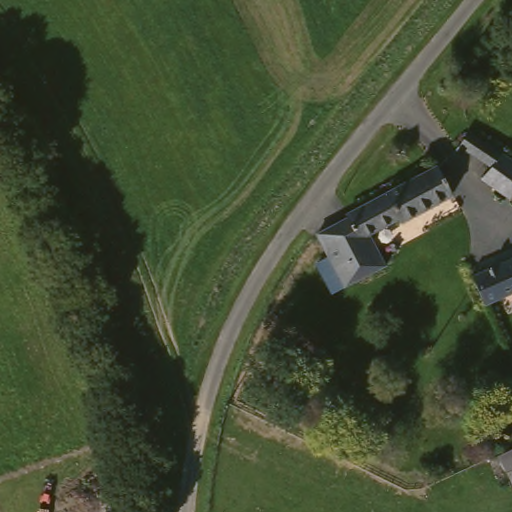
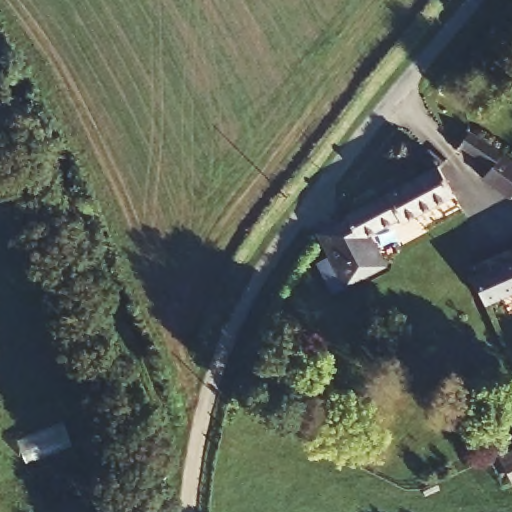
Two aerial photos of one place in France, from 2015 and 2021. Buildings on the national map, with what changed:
unchanged [(493,167),(462,147),(469,134),(512,160),(512,194),(487,177),(493,167)]
unchanged [(375,231),(393,262),(348,284),(316,225),(389,192),(386,184),(439,159),(456,194),(375,231)]
unchanged [(472,269),(512,253),(512,285),(483,296),(472,269)]
unchanged [(512,444),(512,476),(500,449),(512,444)]

